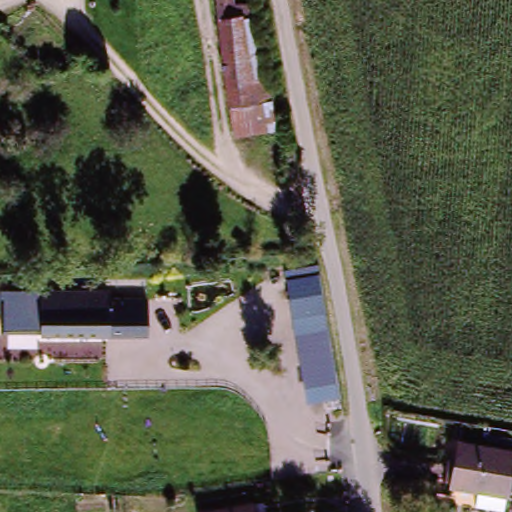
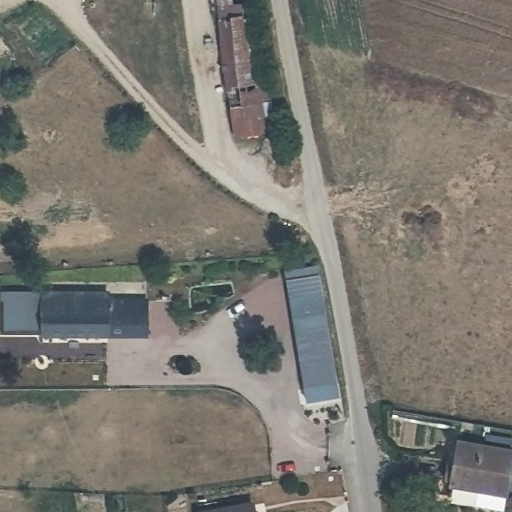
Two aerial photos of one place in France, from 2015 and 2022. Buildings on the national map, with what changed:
unchanged [(262,136),(236,138),(225,31),(250,28),(262,136)]
unchanged [(321,286),(326,320),(295,325),(290,291),(321,286)]
unchanged [(106,302),(148,302),(150,340),(110,342),(36,341),(36,331),(0,333),(0,293),(106,292),(106,302)]
unchanged [(305,395),(303,380),(295,325),(326,320),(335,375),(337,390),(305,395)]
unchanged [(453,492),(463,447),(512,458),(512,502),(453,492)]
unchanged [(258,510),(258,512),(248,512),(258,510)]

